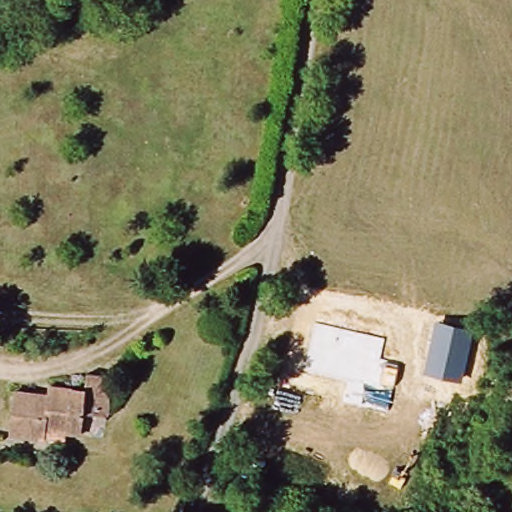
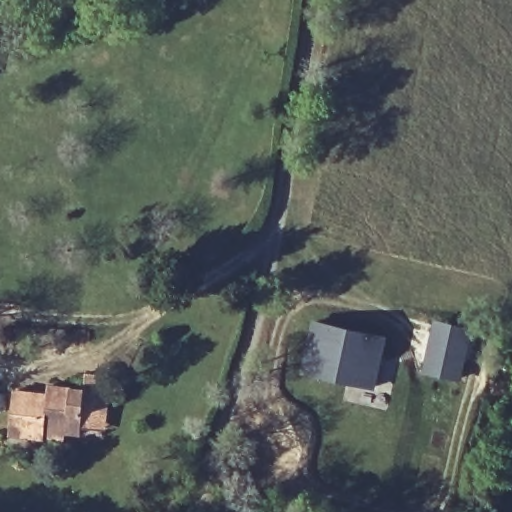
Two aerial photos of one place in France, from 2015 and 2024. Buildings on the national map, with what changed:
unchanged [(473,328),(461,383),(423,375),(435,320),(473,328)]
new [(299,375),(309,321),(383,338),(374,390),(299,375)]
unchanged [(106,404),(86,403),(84,433),(49,431),(48,440),(13,438),(16,394),(49,395),(50,386),(89,387),(90,373),(108,374),(106,404)]

